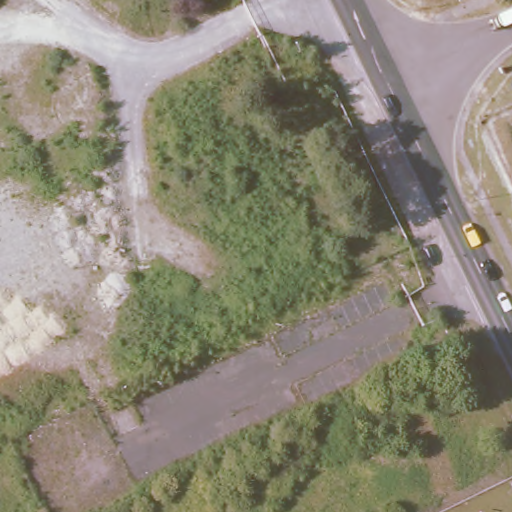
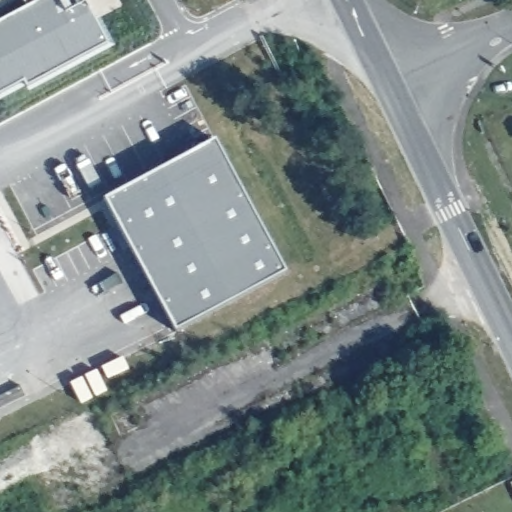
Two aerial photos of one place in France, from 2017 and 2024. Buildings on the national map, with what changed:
new [(105,40),(0,96),(0,23),(28,8),(24,0),(64,0),(70,11),(86,2),(91,12),(105,40)]
new [(285,271),(177,329),(107,199),(215,141),(285,271)]
unchanged [(512,474),(512,482),(509,475),(512,474)]

